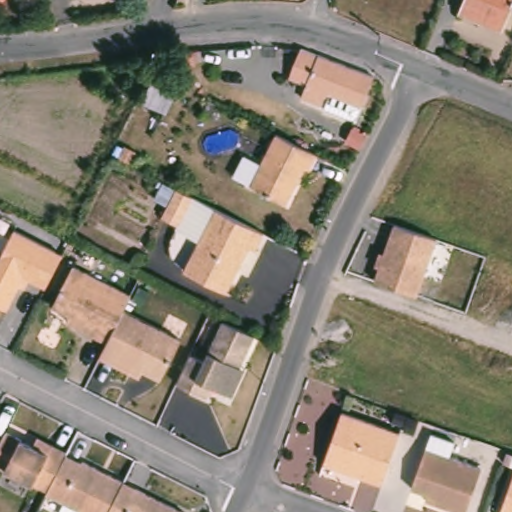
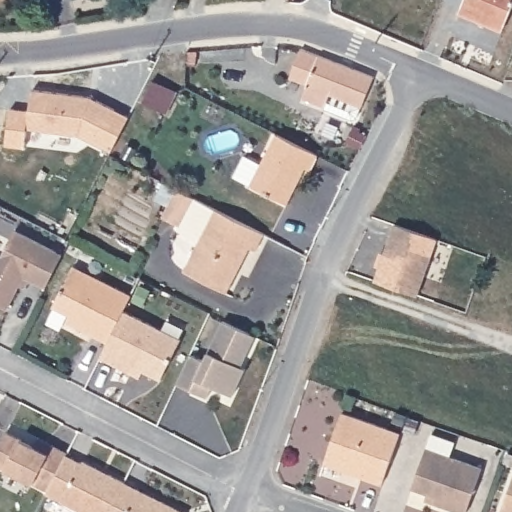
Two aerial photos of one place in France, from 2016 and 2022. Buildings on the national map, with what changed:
unchanged [(0,0),(7,0),(5,3),(0,0)]
unchanged [(459,17),(466,0),(512,0),(512,8),(503,29),(500,35),(480,26),(459,17)]
unchanged [(293,49),(373,82),(362,112),(331,100),(326,112),(301,102),(306,91),(281,81),(293,49)]
new [(29,91),(88,98),(127,117),(109,152),(77,136),(25,130),(29,91)]
unchanged [(271,118),(277,121),(278,119),(290,125),(284,136),(273,129),(274,128),(268,124),(271,118)]
unchanged [(308,174),(304,171),(285,207),(249,189),(275,138),(316,159),(308,174)]
unchanged [(210,213),(240,228),(259,238),(250,256),(245,254),(221,298),(179,276),(195,245),(171,233),(174,229),(173,229),(157,221),(170,193),(188,201),(210,213)]
unchanged [(375,279),(379,268),(371,266),(377,249),(385,251),(395,221),(439,237),(419,294),(375,279)]
unchanged [(14,284),(2,308),(0,306),(0,248),(9,230),(56,254),(40,285),(24,277),(19,286),(14,284)]
unchanged [(62,313),(47,306),(67,266),(125,295),(118,309),(109,326),(101,342),(71,327),(59,320),(62,313)]
unchanged [(125,372),(94,356),(101,342),(109,326),(118,309),(175,338),(154,378),(137,370),(134,376),(125,372)]
unchanged [(189,388),(175,381),(189,353),(203,360),(223,321),(234,326),(254,336),(225,393),(210,385),(204,396),(189,388)]
unchanged [(325,458),(341,412),(400,433),(381,484),(358,476),(323,464),(325,458)]
unchanged [(5,430),(33,444),(37,436),(51,444),(67,451),(65,454),(53,479),(49,487),(47,489),(0,465),(0,440),(5,430)]
unchanged [(482,465),(467,512),(460,512),(425,501),(428,492),(412,488),(425,445),(482,465)]
unchanged [(90,466),(91,464),(185,512),(86,512),(46,492),(47,489),(49,487),(53,479),(65,454),(90,466)]
unchanged [(512,477),(512,512),(499,512),(512,477)]

